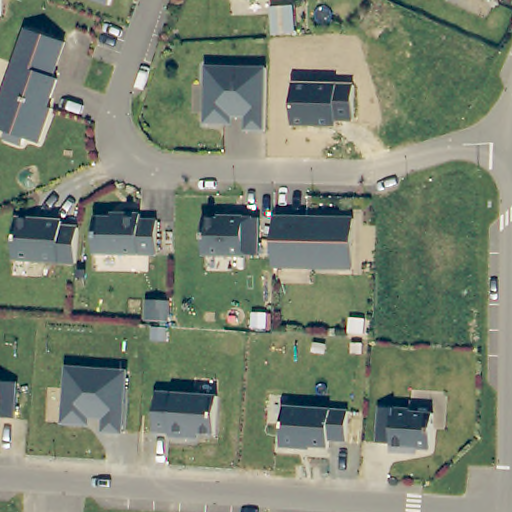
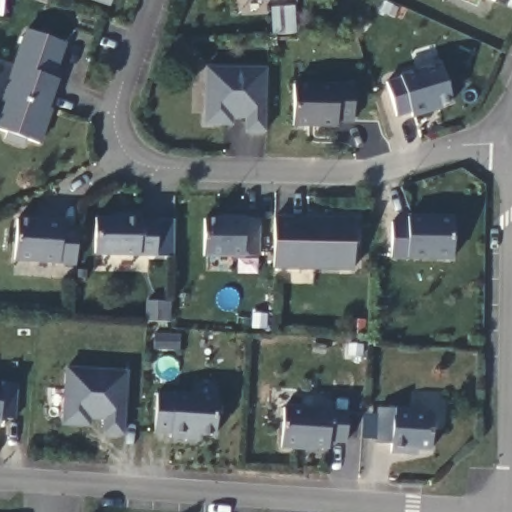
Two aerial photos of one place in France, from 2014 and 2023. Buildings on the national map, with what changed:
unchanged [(0,13),(0,0),(5,0),(3,14),(0,13)]
unchanged [(110,0),(111,0),(111,1),(110,0)]
unchanged [(54,73),(59,74),(52,93),(47,96),(45,101),(52,104),(52,105),(40,139),(27,135),(24,141),(6,134),(8,128),(0,125),(0,106),(6,89),(28,25),(66,38),(54,73)]
new [(453,104),(441,108),(442,110),(413,118),(412,114),(396,118),(384,83),(399,78),(399,75),(440,63),(453,104)]
unchanged [(250,127),(250,114),(230,113),(230,121),(209,120),(211,64),(271,66),(269,128),(250,127)]
unchanged [(335,122),(335,128),(291,126),(293,85),(336,85),(355,85),(355,121),(335,122)]
unchanged [(145,217),(162,217),(161,253),(102,251),(103,215),(128,215),(128,211),(146,212),(145,217)]
unchanged [(262,253),(249,253),(249,254),(207,253),(208,216),(231,217),(231,214),(248,214),(248,216),(263,216),(262,253)]
unchanged [(358,216),(357,266),(277,265),(278,215),(358,216)]
new [(453,260),(407,260),(392,259),(391,220),(407,220),(407,215),(453,216),(453,260)]
unchanged [(19,259),(22,219),(67,222),(67,227),(83,228),(80,263),(19,259)]
unchanged [(170,321),(150,320),(151,299),(171,299),(170,321)]
unchanged [(126,433),(106,432),(107,418),(87,417),(86,425),(66,423),(69,367),(130,371),(126,433)]
unchanged [(18,418),(3,417),(2,425),(0,424),(0,380),(20,382),(18,418)]
unchanged [(217,434),(193,432),(193,437),(173,436),(173,433),(157,432),(159,392),(220,396),(217,434)]
unchanged [(331,440),(331,447),(302,445),(302,448),(283,447),(286,407),(351,411),(349,441),(331,440)]
unchanged [(433,449),(410,447),(410,452),(393,451),(394,443),(379,442),(381,407),(413,409),(412,411),(436,413),(433,449)]

